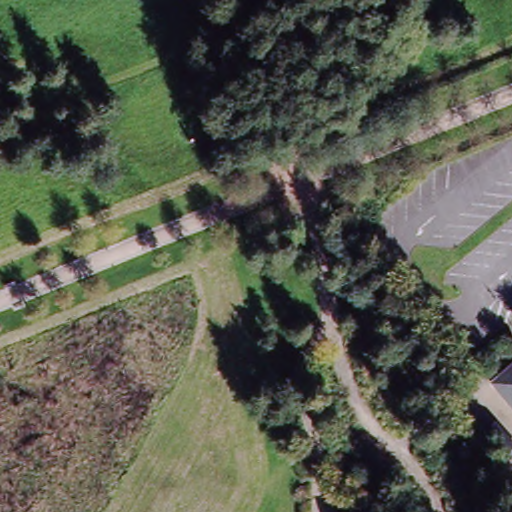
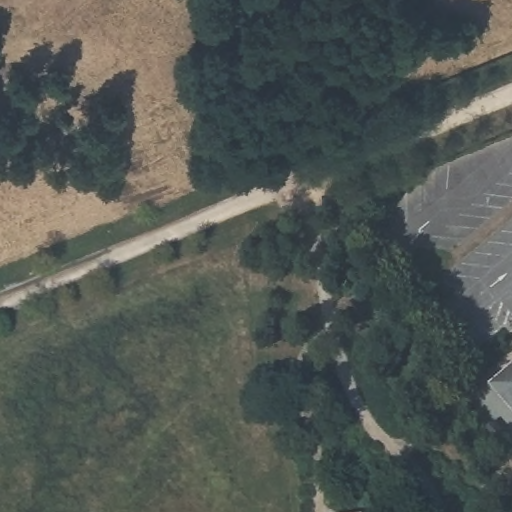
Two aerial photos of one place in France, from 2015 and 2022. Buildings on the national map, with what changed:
unchanged [(512,370),(512,410),(492,387),(512,370)]
unchanged [(496,426),(511,442),(503,451),(487,433),(496,426)]

